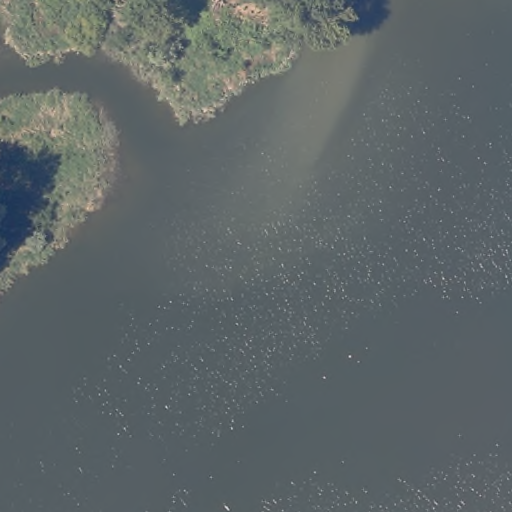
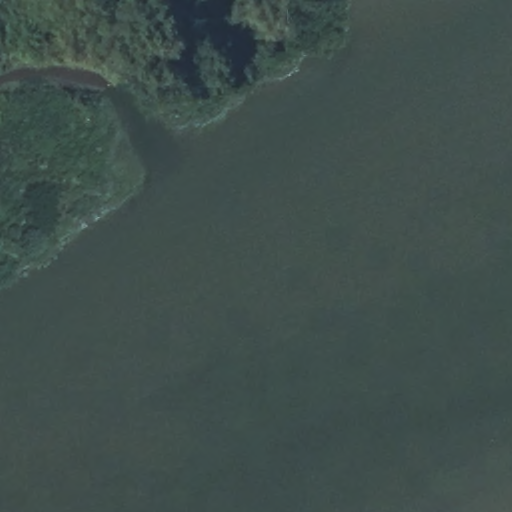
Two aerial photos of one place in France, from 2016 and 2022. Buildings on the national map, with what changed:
[]

